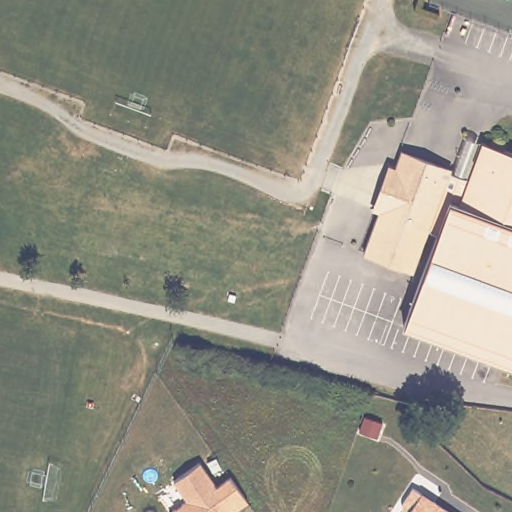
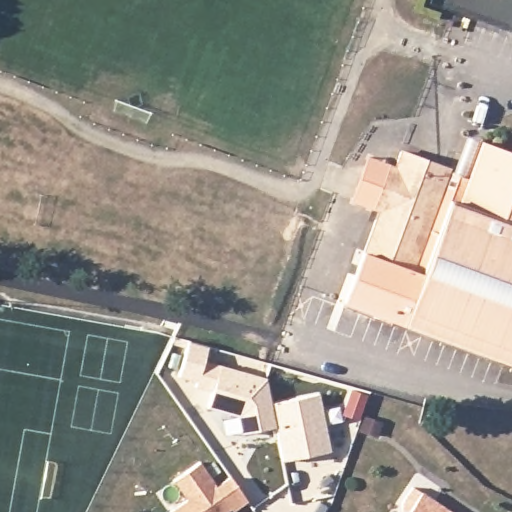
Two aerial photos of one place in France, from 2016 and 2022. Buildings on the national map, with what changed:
unchanged [(437,236),(429,232),(415,270),(365,252),(380,211),(373,209),(350,201),(365,155),(391,163),(390,165),(396,168),(402,151),(452,171),(465,135),(483,141),(512,152),(512,363),(405,325),(437,236)]
new [(345,303),(363,251),(365,252),(415,270),(429,232),(437,236),(405,325),(345,303)]
new [(215,363),(266,377),(271,402),(320,393),(331,452),(283,462),(277,427),(242,434),(238,416),(204,407),(215,363)]
unchanged [(190,500),(175,480),(201,462),(219,486),(232,476),(250,500),(235,511),(233,508),(227,512),(173,512),(190,500)]
unchanged [(408,509),(407,506),(407,503),(408,499),(417,486),(457,512),(410,512),(408,509)]

